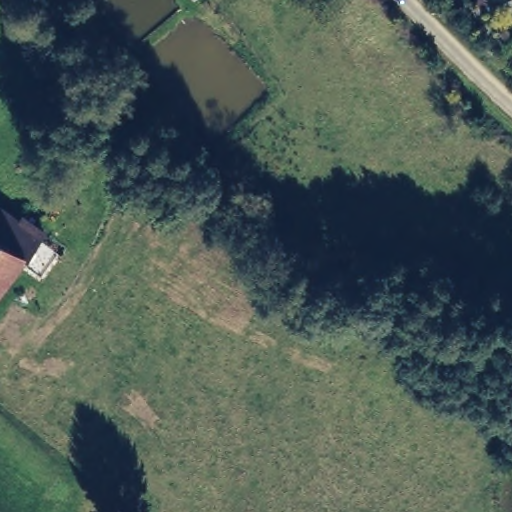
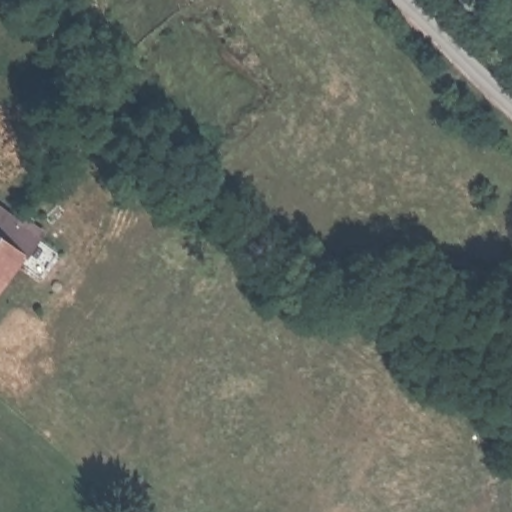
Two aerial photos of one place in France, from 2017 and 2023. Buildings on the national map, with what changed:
unchanged [(17,215),(45,235),(28,261),(20,257),(0,286),(0,215),(12,224),(17,215)]

